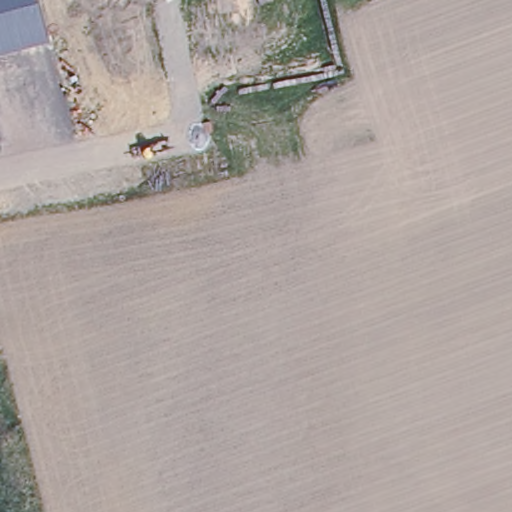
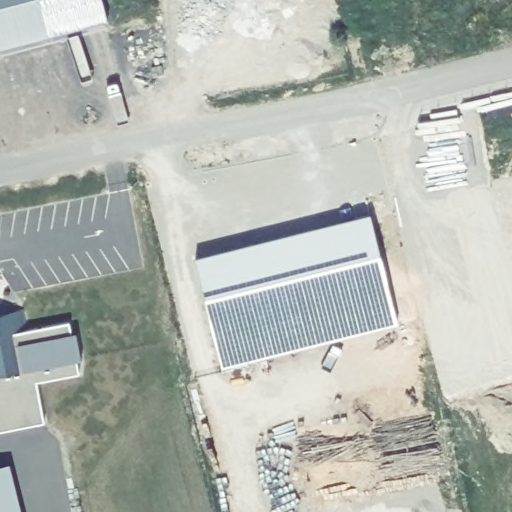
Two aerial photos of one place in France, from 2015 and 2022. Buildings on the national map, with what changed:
unchanged [(51,37),(0,51),(0,0),(41,0),(51,37)]
new [(370,214),(390,293),(215,338),(195,259),(370,214)]
new [(390,293),(398,323),(222,367),(215,338),(390,293)]
new [(13,333),(69,323),(71,333),(77,332),(82,360),(77,361),(79,374),(35,382),(43,423),(0,432),(0,312),(9,310),(13,333)]
new [(0,512),(0,466),(10,464),(22,512),(0,512)]

